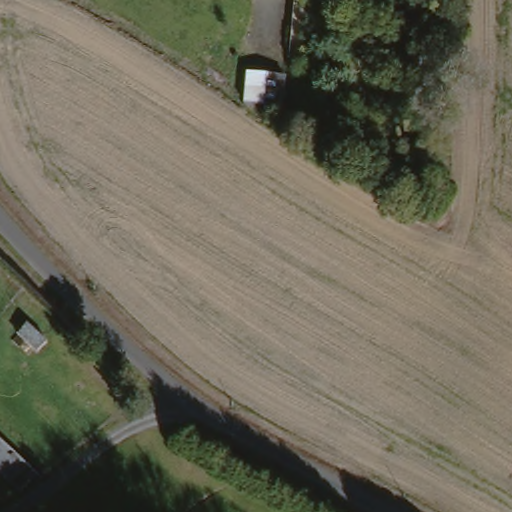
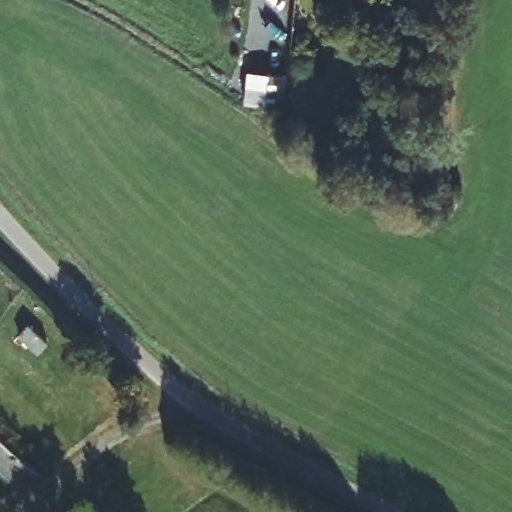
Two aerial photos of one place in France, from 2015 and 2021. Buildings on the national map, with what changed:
unchanged [(272,73),(291,74),(288,110),(269,109),(272,73)]
unchanged [(35,471),(17,489),(0,473),(0,436),(35,471)]

